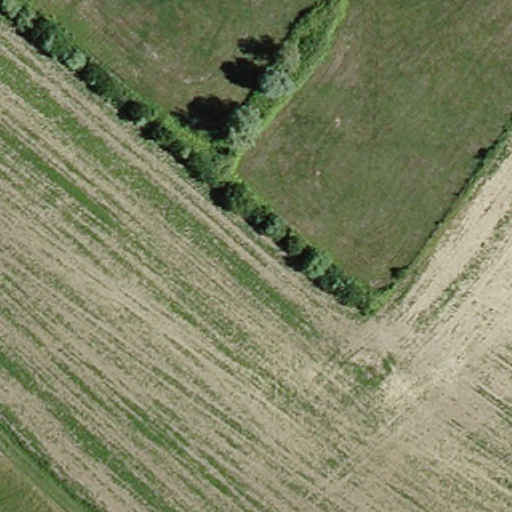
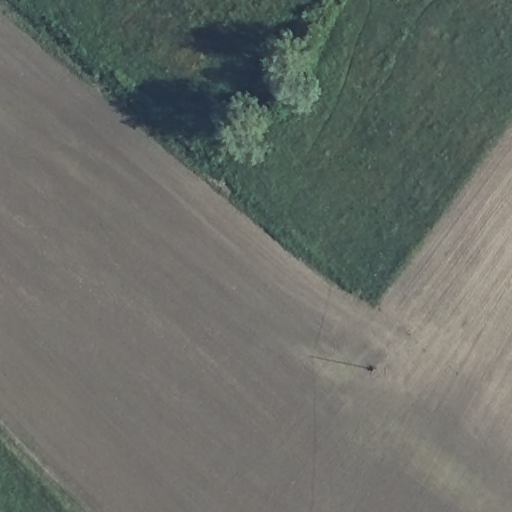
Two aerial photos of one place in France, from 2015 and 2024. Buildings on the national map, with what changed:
[]

